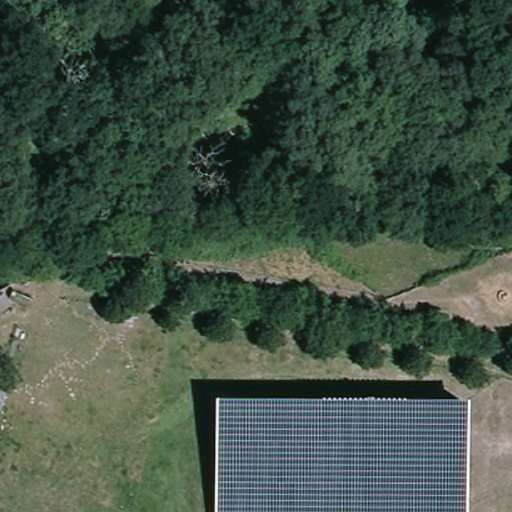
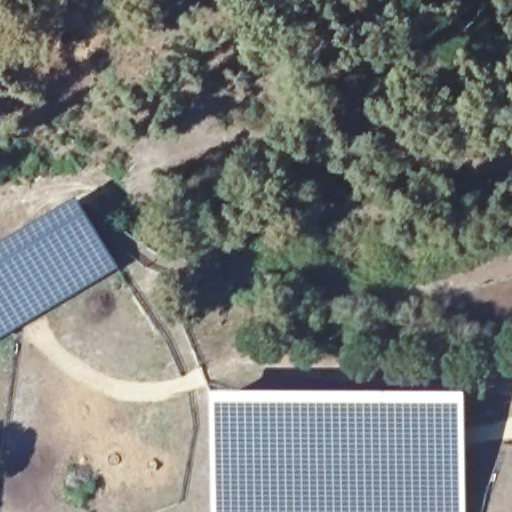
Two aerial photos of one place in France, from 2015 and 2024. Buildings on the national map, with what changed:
new [(118,267),(0,338),(0,246),(77,200),(118,267)]
demolished [(1,294),(10,306),(0,312),(0,279),(8,289),(1,294)]
unchanged [(216,512),(215,402),(468,401),(468,512),(216,512)]

